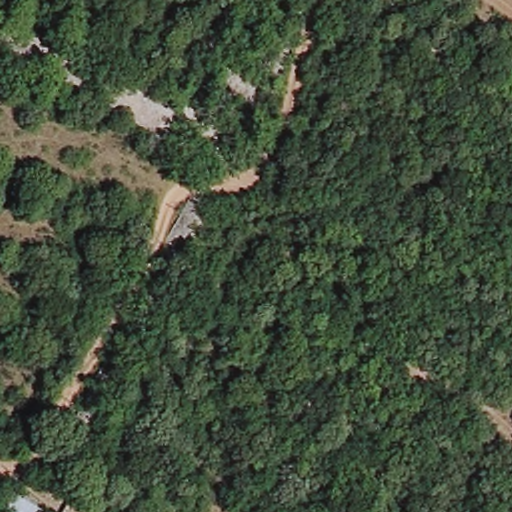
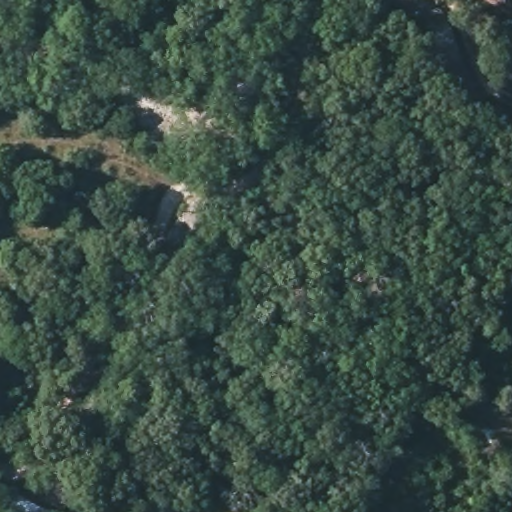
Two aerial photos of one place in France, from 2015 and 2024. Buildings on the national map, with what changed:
unchanged [(48,509),(46,512),(1,512),(10,490),(48,509)]

